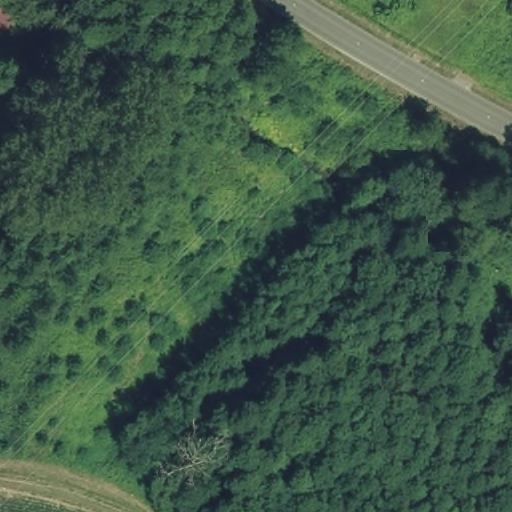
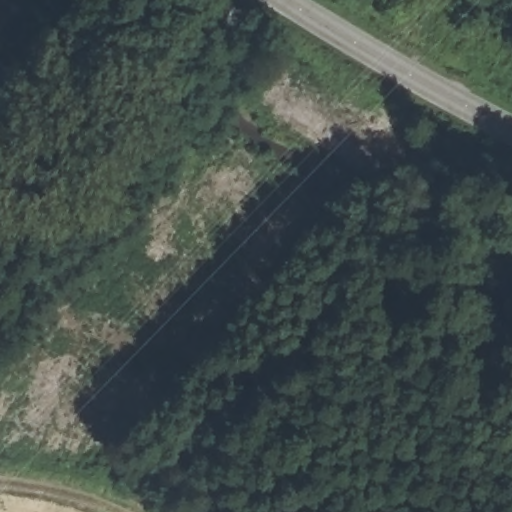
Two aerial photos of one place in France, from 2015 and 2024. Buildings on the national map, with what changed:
unchanged [(0,30),(0,6),(11,16),(0,30)]

